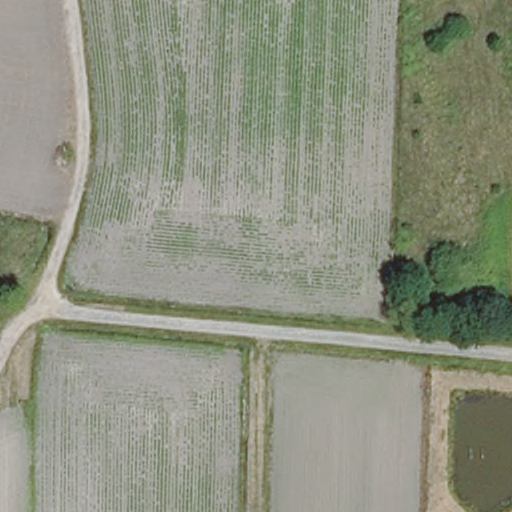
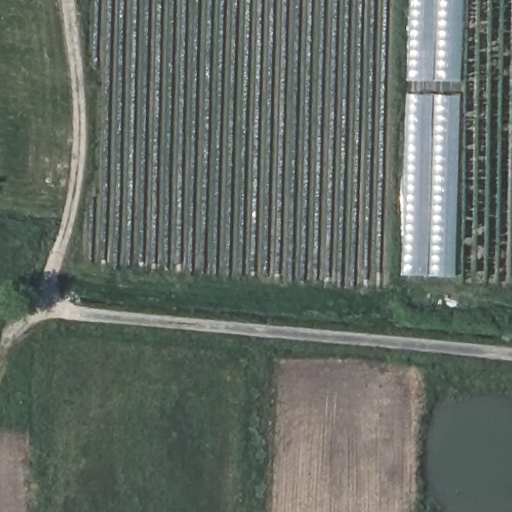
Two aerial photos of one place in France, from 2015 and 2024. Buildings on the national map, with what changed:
new [(414,0),(462,0),(455,276),(408,275),(414,0)]
demolished [(407,409),(405,512),(367,512),(369,410),(407,409)]

